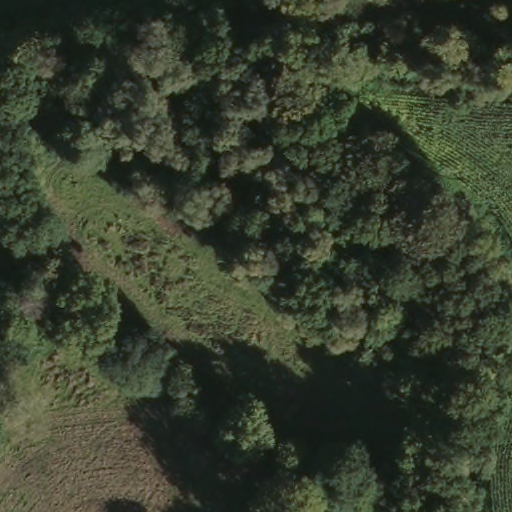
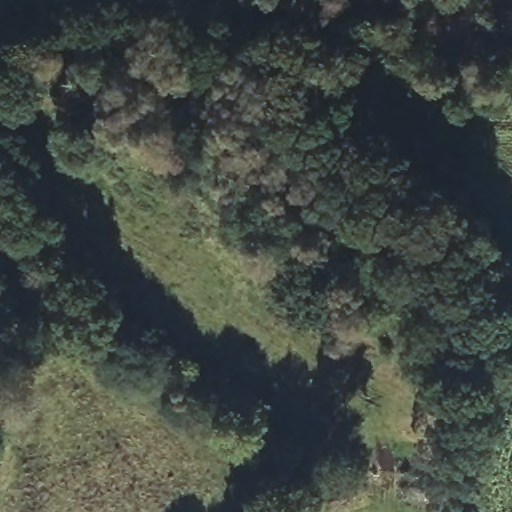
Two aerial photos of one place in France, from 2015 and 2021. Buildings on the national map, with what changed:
[]

